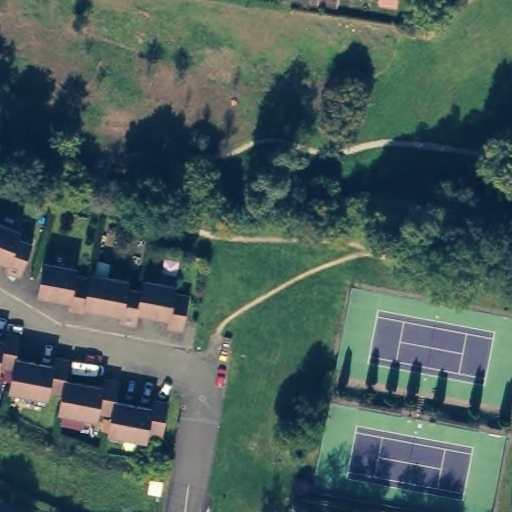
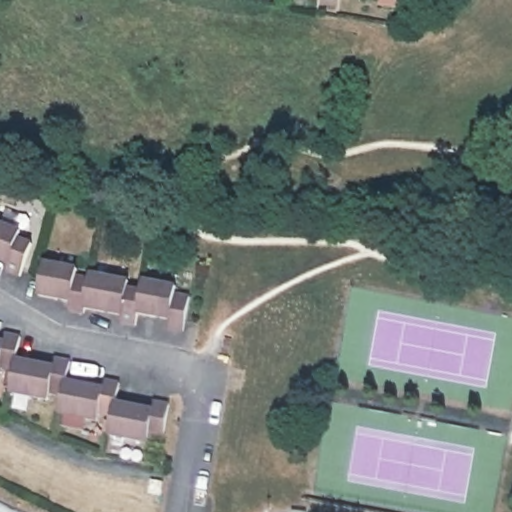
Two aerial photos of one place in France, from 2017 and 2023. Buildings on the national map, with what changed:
unchanged [(384,4),(384,0),(399,0),(398,6),(384,4)]
unchanged [(26,236),(23,244),(37,249),(24,280),(9,275),(11,268),(0,264),(0,226),(26,236)]
unchanged [(88,313),(72,310),(74,301),(42,295),(49,261),(82,268),(81,276),(93,278),(94,273),(132,281),(131,288),(144,291),(146,281),(180,288),(179,295),(191,298),(186,331),(171,328),(172,320),(141,313),(138,325),(123,321),(124,315),(89,308),(88,313)]
unchanged [(4,340),(6,333),(23,336),(18,360),(55,366),(57,360),(72,362),(69,381),(103,388),(105,381),(121,384),(117,403),(152,410),(153,402),(169,405),(163,438),(148,435),(146,442),(110,435),(114,416),(99,413),(97,421),(61,414),(64,395),(50,392),(49,399),(11,392),(16,370),(0,367),(0,340),(4,340)]
unchanged [(163,477),(160,490),(150,488),(152,475),(163,477)]

